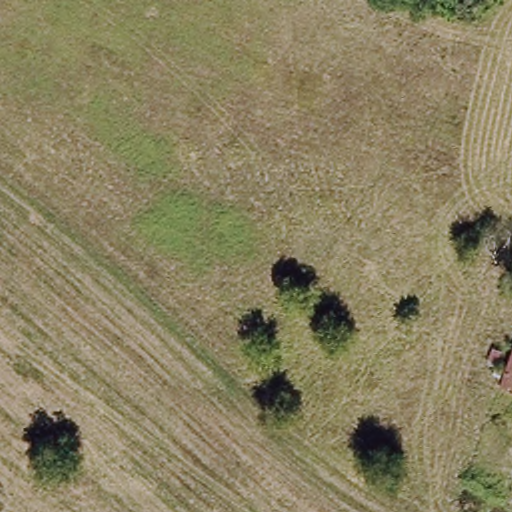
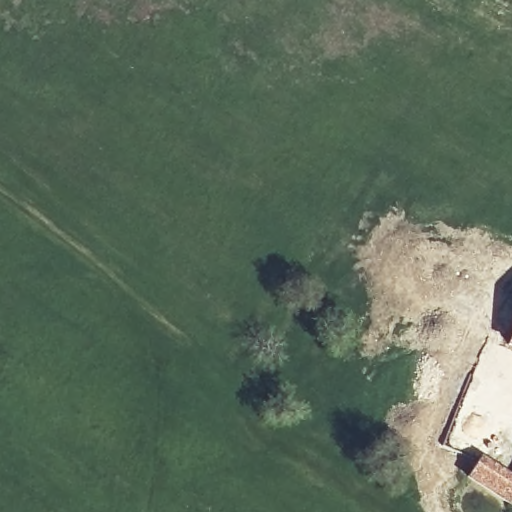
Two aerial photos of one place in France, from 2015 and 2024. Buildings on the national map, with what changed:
demolished [(512,389),(505,387),(512,363),(512,389)]
new [(480,457),(512,476),(512,511),(465,481),(480,457)]

